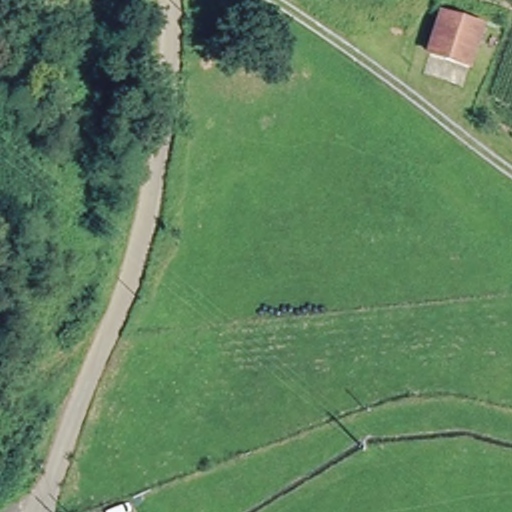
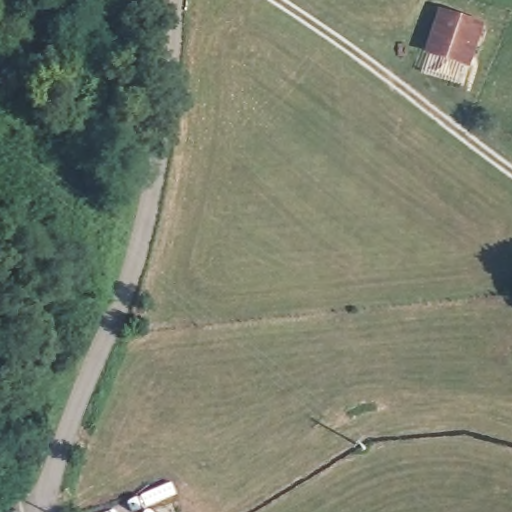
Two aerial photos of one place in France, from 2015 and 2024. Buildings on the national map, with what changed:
unchanged [(467,63),(426,46),(440,9),(481,24),(467,63)]

